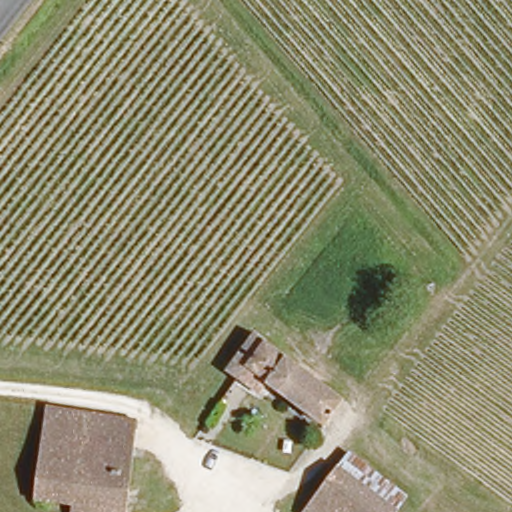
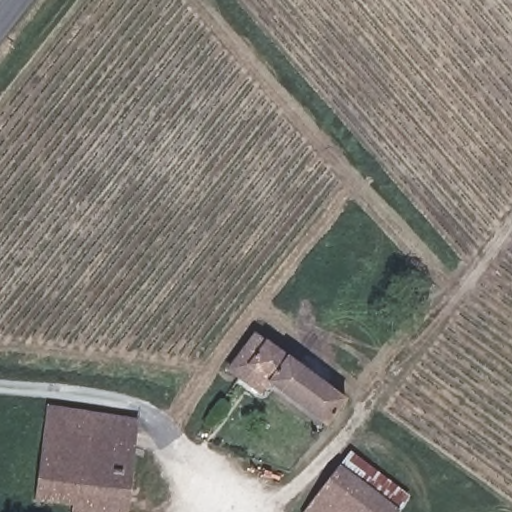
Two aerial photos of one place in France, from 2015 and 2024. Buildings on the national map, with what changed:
unchanged [(249,343),(252,339),(332,398),(325,408),(315,419),(235,359),(249,343)]
unchanged [(129,512),(41,512),(46,407),(138,426),(129,512)]
unchanged [(355,451),(409,492),(393,512),(304,512),(355,451)]

